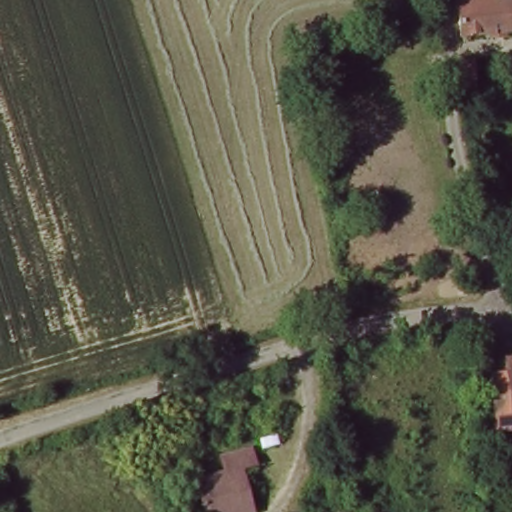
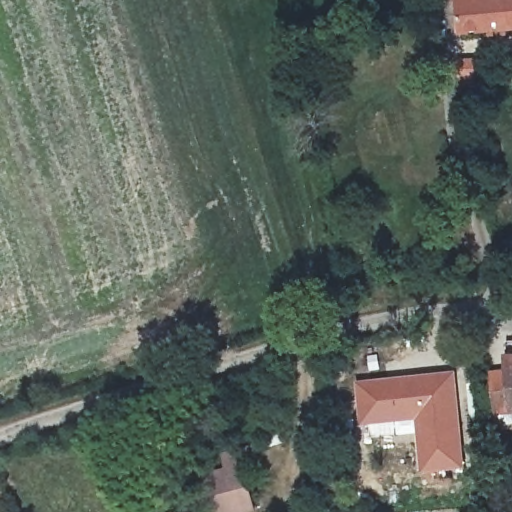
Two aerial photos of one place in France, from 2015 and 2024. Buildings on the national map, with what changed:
unchanged [(456,32),(452,0),(512,0),(512,28),(456,32)]
unchanged [(495,418),(490,367),(512,367),(512,418),(495,418)]
new [(457,371),(466,468),(420,473),(415,435),(395,436),(394,429),(360,428),(355,381),(457,371)]
unchanged [(192,472),(222,465),(218,449),(249,442),(253,457),(238,461),(249,506),(230,510),(222,512),(203,512),(202,512),(192,472)]

